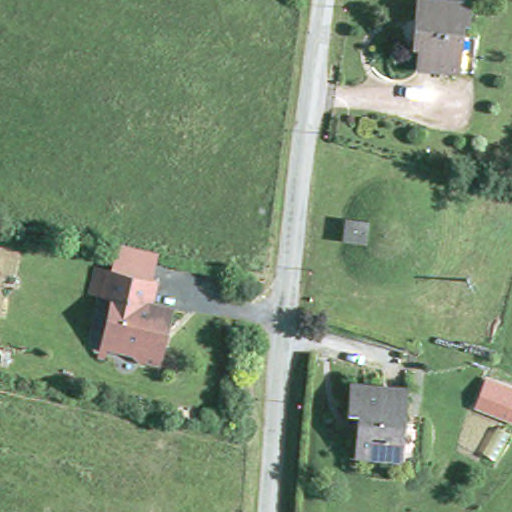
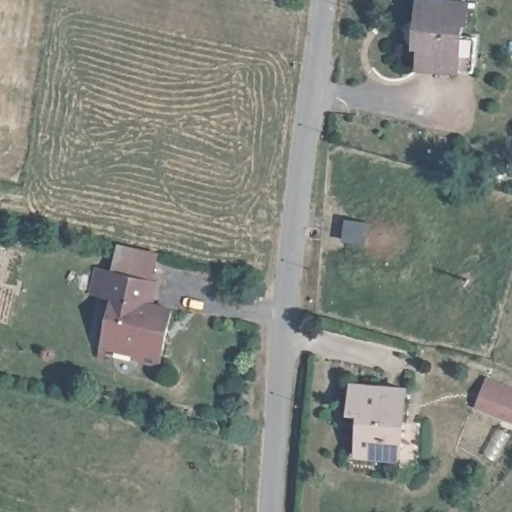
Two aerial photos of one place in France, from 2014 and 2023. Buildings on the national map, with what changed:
unchanged [(409,27),(415,28),(417,0),(462,0),(460,23),(456,23),(455,39),(470,40),(467,75),(410,70),(412,48),(407,48),(409,27)]
unchanged [(165,308),(154,364),(133,360),(135,347),(97,339),(105,295),(92,293),(96,268),(110,270),(150,279),(145,304),(165,308)]
unchanged [(512,387),(512,420),(474,407),(485,378),(512,387)]
unchanged [(360,428),(362,404),(347,403),(349,381),(400,385),(395,454),(352,451),(354,427),(360,428)]

